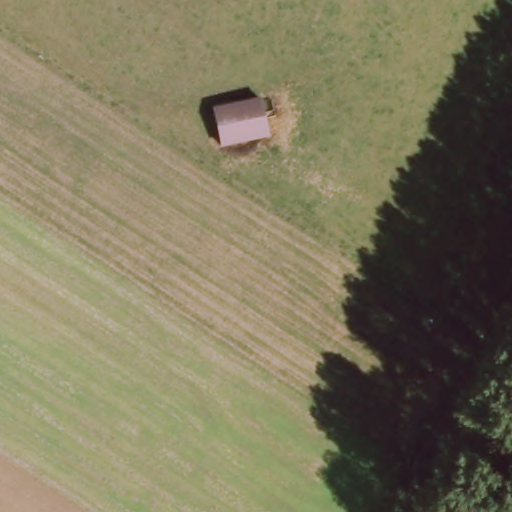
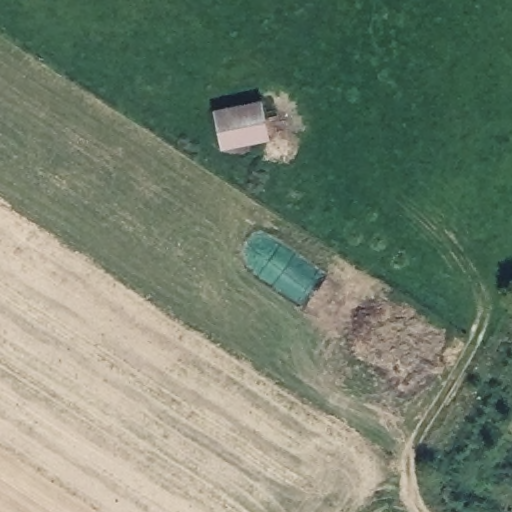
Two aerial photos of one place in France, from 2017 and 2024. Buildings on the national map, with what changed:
unchanged [(221,145),(214,106),(265,96),(271,137),(221,145)]

